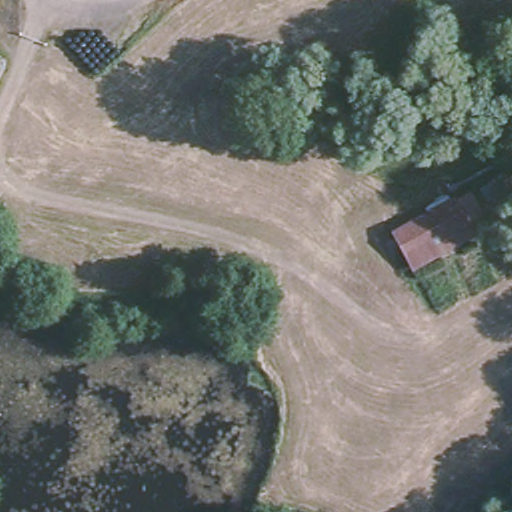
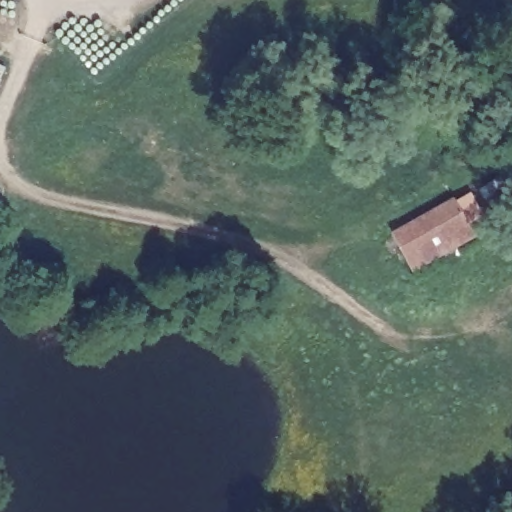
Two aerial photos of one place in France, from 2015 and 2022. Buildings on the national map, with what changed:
unchanged [(0,77),(0,62),(5,66),(0,77)]
unchanged [(477,240),(414,277),(390,231),(454,194),(477,240)]

